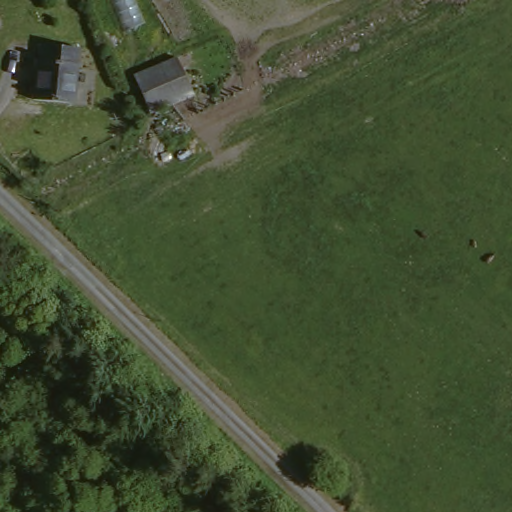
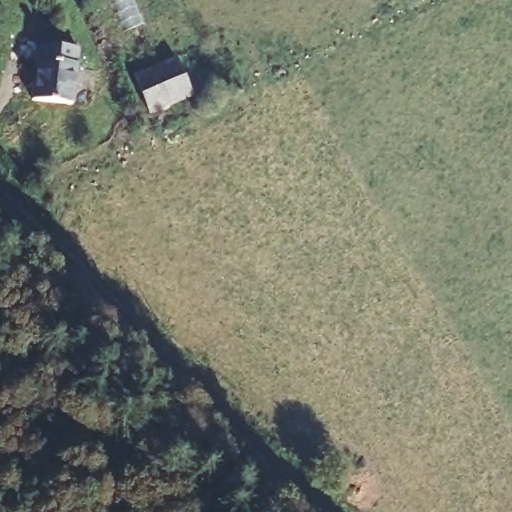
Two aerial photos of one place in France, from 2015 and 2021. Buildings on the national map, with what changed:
unchanged [(75,49),(72,106),(29,102),(32,63),(36,63),(38,45),(75,49)]
unchanged [(178,62),(194,97),(146,116),(133,79),(178,62)]

